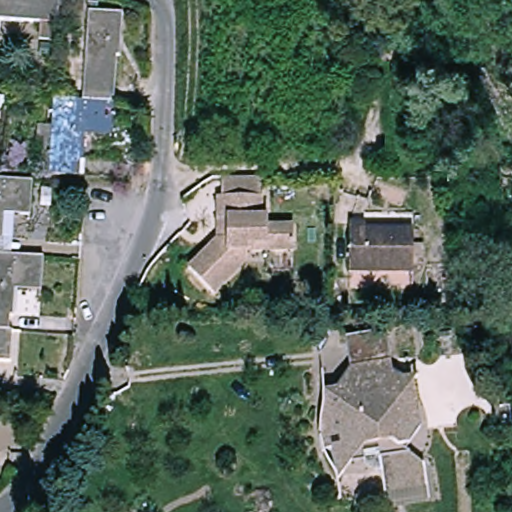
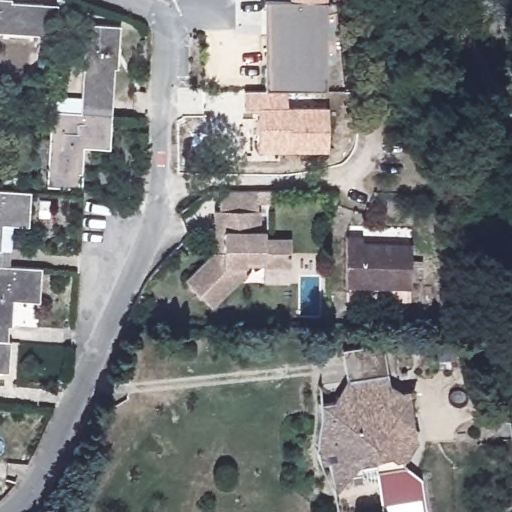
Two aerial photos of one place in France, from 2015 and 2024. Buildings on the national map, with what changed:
unchanged [(44,34),(4,31),(3,45),(0,45),(0,0),(17,0),(17,1),(63,4),(62,35),(61,52),(43,51),(44,34)]
new [(325,0),(325,89),(268,89),(267,1),(290,1),(290,0),(325,0)]
unchanged [(88,27),(119,29),(114,118),(83,116),(88,27)]
new [(288,105),(328,105),(328,150),(258,151),(257,107),(244,109),(244,90),(268,89),(288,89),(288,105)]
unchanged [(112,149),(83,147),(80,192),(49,191),(53,115),(83,116),(114,118),(112,149)]
unchanged [(32,222),(1,220),(0,242),(0,190),(34,192),(32,222)]
unchanged [(262,215),(264,215),(264,236),(270,237),(270,245),(297,245),(298,267),(249,269),(249,278),(216,309),(192,284),(218,260),(222,260),(221,237),(220,217),(225,217),(224,191),(262,191),(262,215)]
unchanged [(365,240),(365,247),(414,247),(414,288),(348,287),(348,240),(365,240)]
unchanged [(42,297),(13,295),(10,340),(0,340),(0,265),(44,267),(42,297)]
unchanged [(8,372),(0,372),(0,340),(10,340),(8,372)]
unchanged [(385,345),(392,385),(403,395),(410,395),(419,430),(421,442),(406,467),(424,480),(429,512),(387,512),(381,471),(356,475),(340,492),(335,462),(327,463),(322,444),(322,437),(324,418),(323,405),(332,405),(338,396),(349,382),(345,351),(385,345)]

